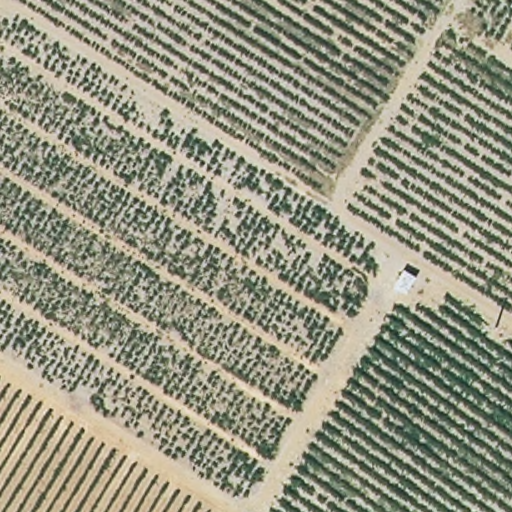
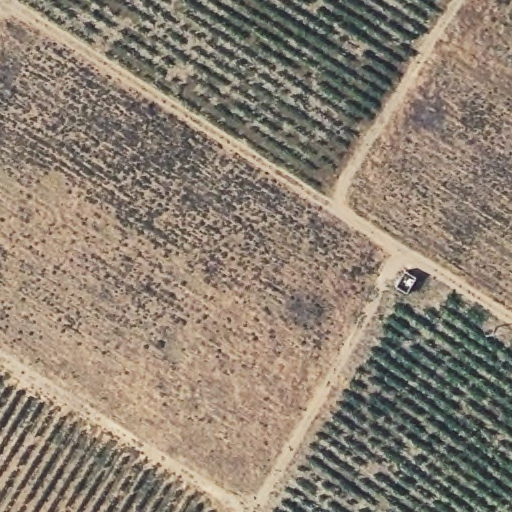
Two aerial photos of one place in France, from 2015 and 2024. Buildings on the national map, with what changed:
unchanged [(405,273),(419,282),(407,302),(392,292),(405,273)]

